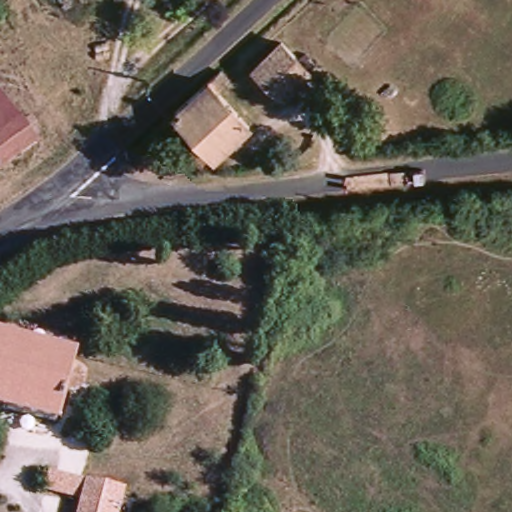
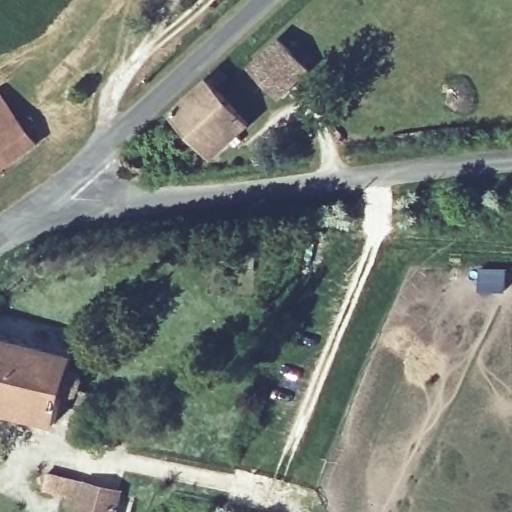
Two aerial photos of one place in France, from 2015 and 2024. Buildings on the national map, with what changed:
unchanged [(296,54),(309,71),(277,99),(251,69),(291,30),(305,50),(296,54)]
unchanged [(217,89),(250,125),(216,155),(175,111),(220,70),(228,79),(217,89)]
unchanged [(0,136),(0,91),(21,121),(0,136)]
unchanged [(37,144),(0,170),(0,136),(21,121),(37,144)]
unchanged [(70,370),(85,382),(85,391),(99,395),(87,435),(0,411),(0,337),(73,357),(70,370)]
unchanged [(49,490),(55,473),(127,494),(122,512),(87,512),(90,503),(49,490)]

